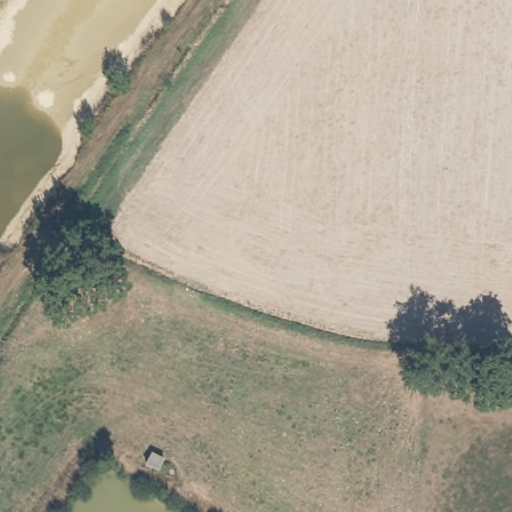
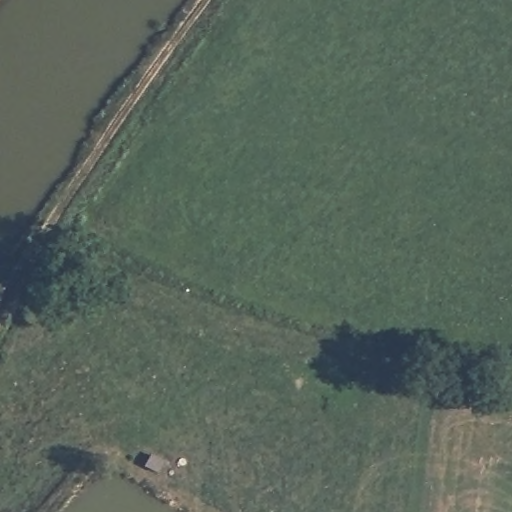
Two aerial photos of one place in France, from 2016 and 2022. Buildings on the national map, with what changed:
unchanged [(170,459),(162,472),(146,463),(155,449),(170,459)]

